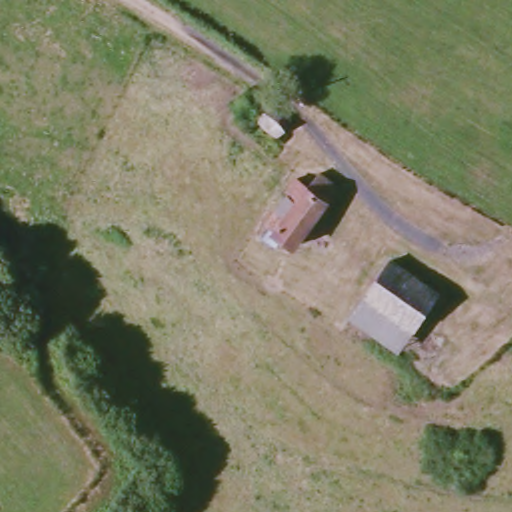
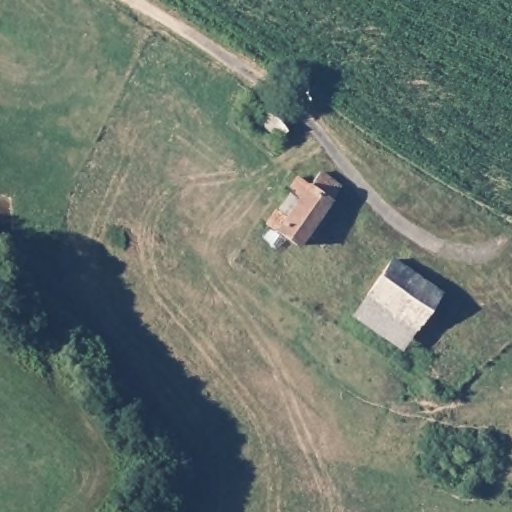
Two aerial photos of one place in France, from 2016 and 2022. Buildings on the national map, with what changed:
unchanged [(312,185),(333,200),(325,212),(292,257),(261,233),(270,221),(277,226),(280,224),(273,218),(283,204),(291,212),(295,209),(283,199),(292,188),(303,196),(312,185)]
unchanged [(392,257),(441,290),(415,327),(366,293),(392,257)]
unchanged [(400,348),(352,315),(366,293),(415,327),(400,348)]

